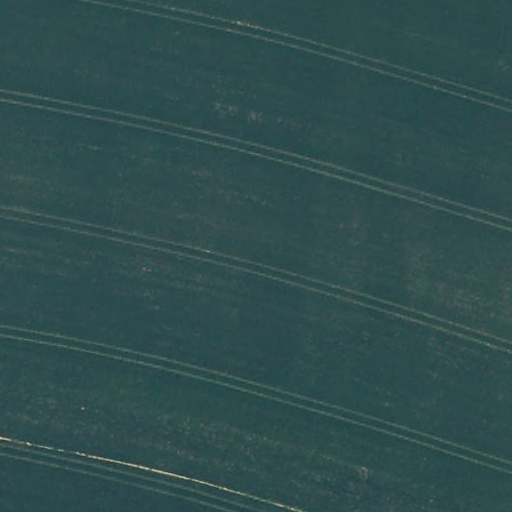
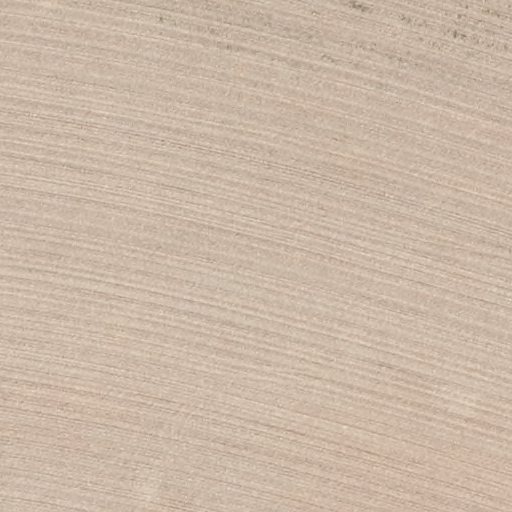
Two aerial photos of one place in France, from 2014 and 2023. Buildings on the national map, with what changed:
[]

